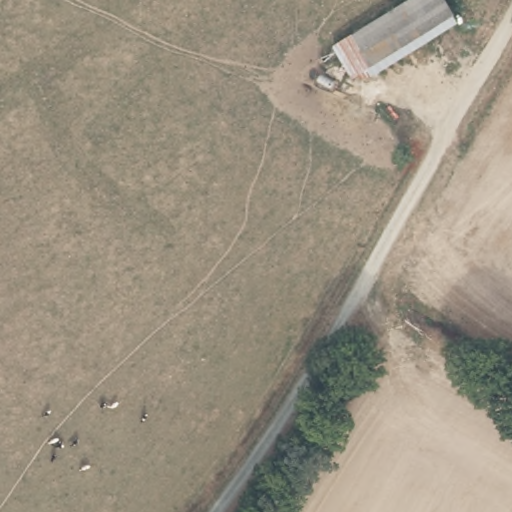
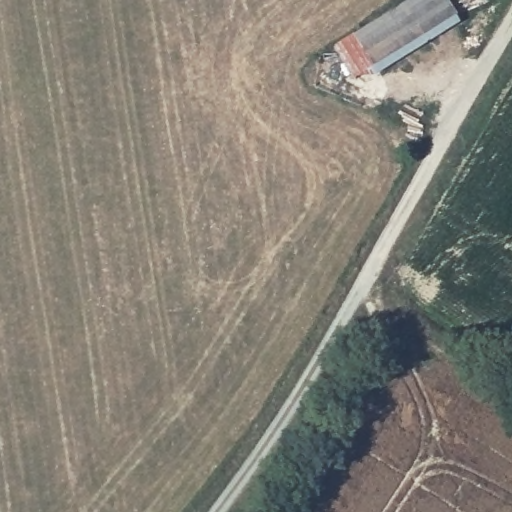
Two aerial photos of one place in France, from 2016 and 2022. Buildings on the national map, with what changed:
unchanged [(414,0),(448,0),(463,25),(377,80),(371,71),(355,81),(335,47),(414,0)]

